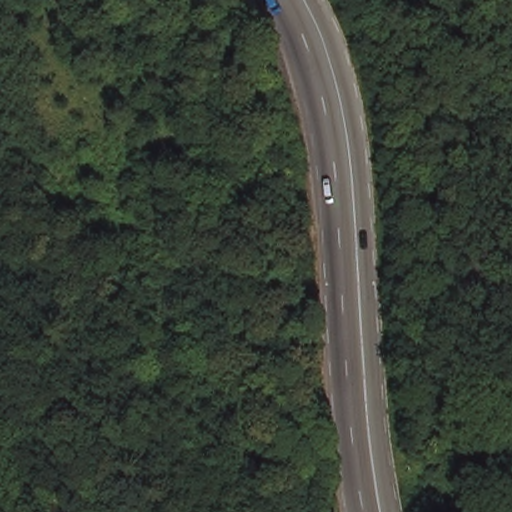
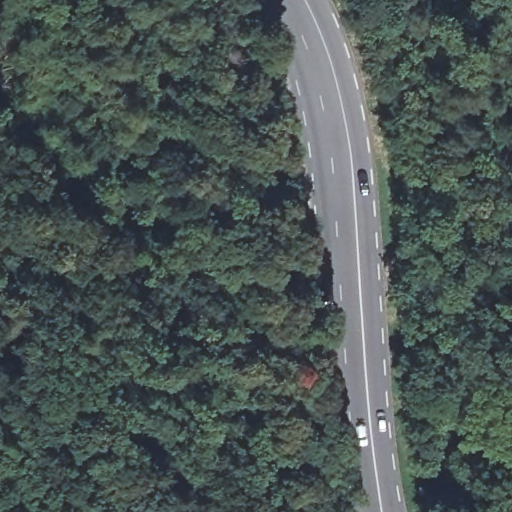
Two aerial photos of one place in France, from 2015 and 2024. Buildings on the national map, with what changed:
[]

